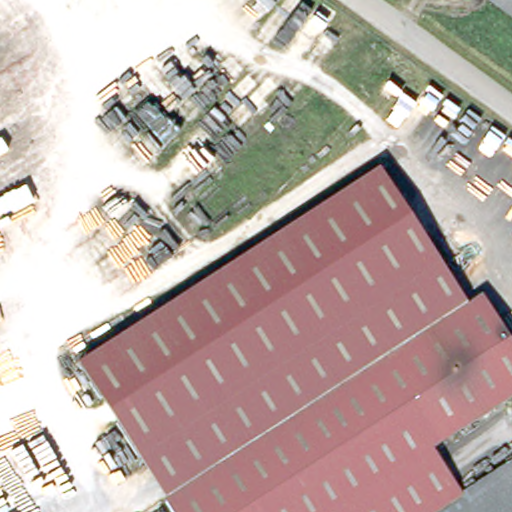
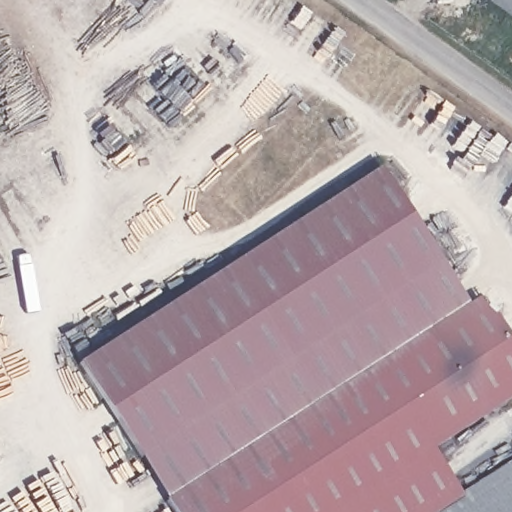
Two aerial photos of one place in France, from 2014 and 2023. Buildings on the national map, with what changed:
unchanged [(492,0),(512,0),(512,14),(492,0)]
unchanged [(135,453),(78,358),(388,166),(447,261),(239,389),(135,453)]
unchanged [(447,261),(475,305),(267,435),(164,499),(135,453),(239,389),(447,261)]
unchanged [(267,435),(475,305),(486,298),(499,319),(192,512),(172,512),(164,499),(267,435)]
unchanged [(512,340),(512,400),(434,448),(462,494),(512,462),(512,512),(192,512),(499,319),(512,340)]

